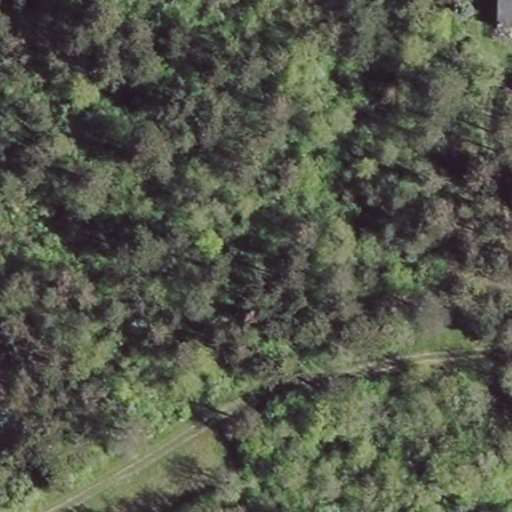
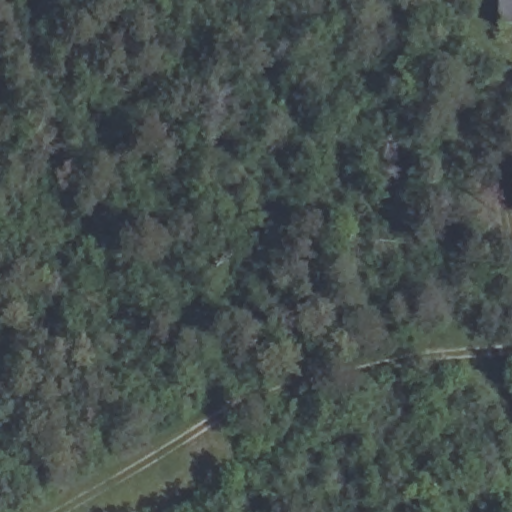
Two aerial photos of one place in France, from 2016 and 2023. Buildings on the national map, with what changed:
unchanged [(495,0),(512,0),(512,31),(493,30),(495,0)]

